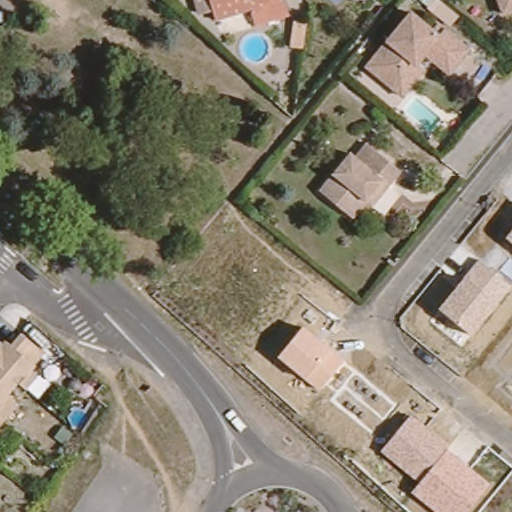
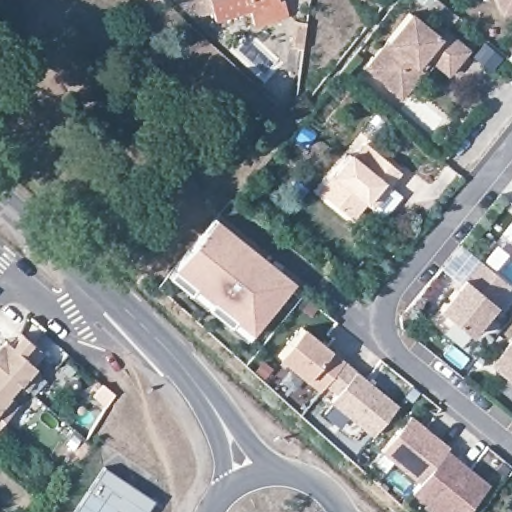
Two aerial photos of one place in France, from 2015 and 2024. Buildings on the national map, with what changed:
unchanged [(213,21),(209,0),(270,0),(272,11),(213,21)]
unchanged [(493,0),(512,0),(512,7),(498,13),(493,0)]
unchanged [(410,91),(401,84),(396,91),(367,67),(412,13),(435,31),(440,25),(471,50),(450,74),(426,55),(417,66),(409,76),(416,67),(425,73),(410,91)]
unchanged [(363,204),(349,220),(316,194),(347,156),(353,161),(365,147),(398,174),(385,189),(368,209),(363,204)]
new [(211,222),(256,260),(240,280),(246,285),(261,268),(286,288),(272,306),(273,307),(250,334),(172,270),(211,222)]
unchanged [(512,229),(512,242),(506,237),(512,229)]
unchanged [(512,289),(471,337),(436,310),(481,256),(512,282),(512,289)]
unchanged [(346,361),(320,393),(276,358),(303,325),(346,361)]
unchanged [(28,382),(24,379),(21,376),(0,358),(0,343),(5,340),(8,337),(11,339),(23,327),(46,347),(35,360),(38,362),(37,363),(41,367),(28,382)]
unchanged [(512,390),(487,370),(512,339),(512,390)]
unchanged [(21,376),(10,388),(13,391),(11,392),(16,396),(2,412),(0,409),(0,358),(21,376)]
new [(397,405),(372,435),(330,402),(337,395),(326,386),(346,361),(397,405)]
unchanged [(105,392),(97,406),(85,395),(95,383),(105,392)]
unchanged [(0,414),(0,409),(2,412),(0,414)]
unchanged [(453,445),(448,451),(491,484),(469,512),(434,512),(410,492),(418,482),(380,451),(411,412),(453,445)]
new [(100,467),(151,501),(144,512),(115,512),(113,511),(112,512),(71,512),(100,467)]

